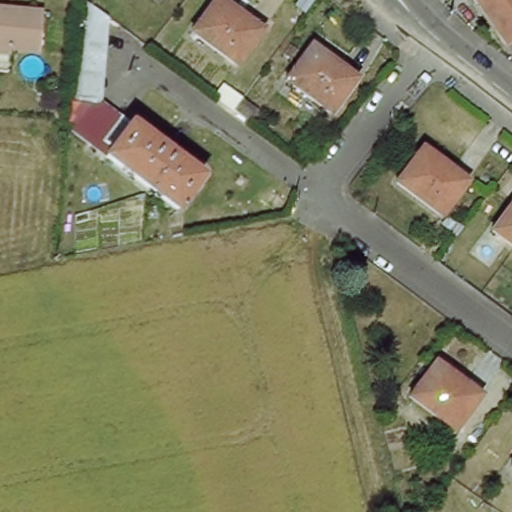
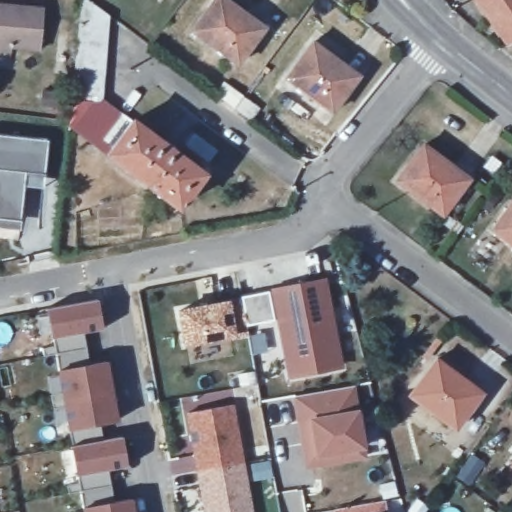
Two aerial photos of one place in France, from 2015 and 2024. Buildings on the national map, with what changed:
unchanged [(71,103),(81,21),(83,0),(87,0),(111,19),(105,41),(102,106),(71,103)]
unchanged [(240,66),(194,30),(220,0),(232,0),(270,30),(240,66)]
unchanged [(476,0),(512,0),(512,40),(509,43),(476,0)]
unchanged [(44,13),(39,54),(0,50),(0,8),(44,13)]
unchanged [(362,74),(336,109),(291,75),(316,39),(362,74)]
unchanged [(99,139),(68,150),(71,103),(102,106),(99,139)]
unchanged [(205,171),(179,208),(105,151),(132,115),(205,171)]
new [(50,135),(46,170),(27,168),(22,216),(0,214),(0,130),(50,135)]
unchanged [(470,177),(440,214),(398,180),(426,143),(470,177)]
unchanged [(512,203),(512,240),(494,225),(512,203)]
new [(330,280),(346,367),(297,376),(280,290),(330,280)]
new [(242,296),(249,329),(186,340),(180,307),(242,296)]
new [(82,508),(77,475),(72,448),(70,431),(59,369),(53,338),(48,311),(97,303),(102,330),(83,334),(89,365),(106,362),(117,424),(99,427),(102,443),(120,440),(126,468),(108,472),(114,504),(132,501),(133,512),(83,512),(82,508)]
unchanged [(485,389),(455,424),(413,394),(441,355),(485,389)]
new [(305,423),(301,396),(358,386),(370,457),(325,464),(312,467),(305,423)]
new [(238,405),(248,463),(204,471),(194,413),(238,405)]
new [(248,463),(257,512),(211,512),(204,471),(248,463)]
new [(336,506),(384,498),(387,512),(337,512),(336,506)]

